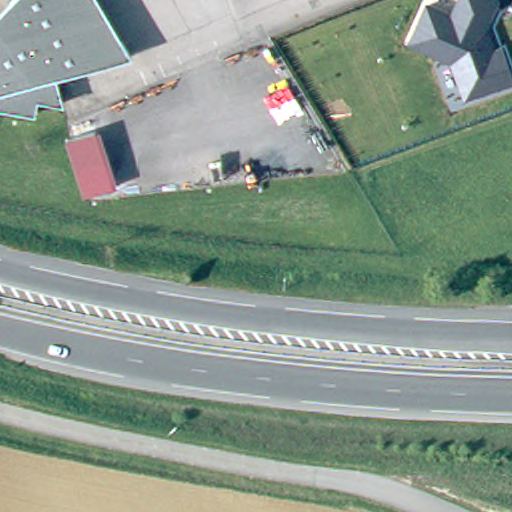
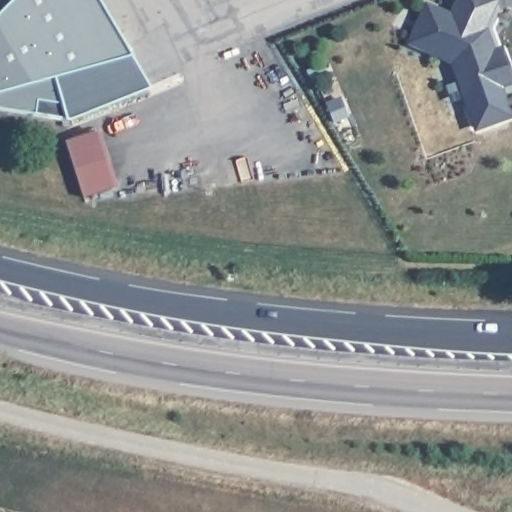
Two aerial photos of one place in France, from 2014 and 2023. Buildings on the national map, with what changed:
unchanged [(18,3),(21,0),(106,0),(139,56),(62,78),(70,105),(44,100),(42,114),(0,107),(0,21),(18,3)]
unchanged [(489,33),(495,50),(502,48),(512,74),(512,84),(462,101),(450,67),(407,47),(427,2),(451,13),(457,0),(500,0),(503,1),(489,33)]
new [(155,87),(69,121),(42,114),(44,100),(70,105),(62,78),(139,56),(155,87)]
unchanged [(100,133),(117,190),(82,199),(63,144),(100,133)]

